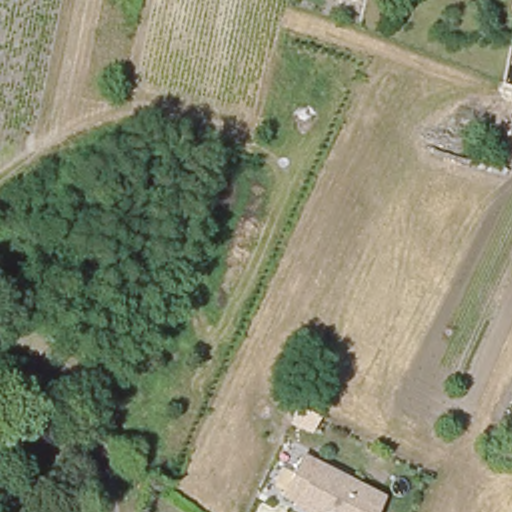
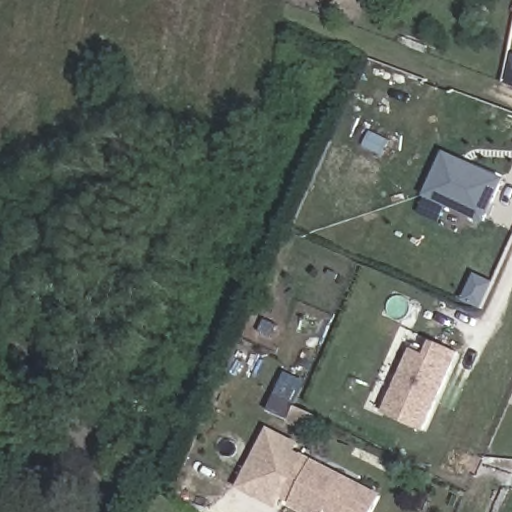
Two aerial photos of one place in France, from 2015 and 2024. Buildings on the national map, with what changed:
new [(485,224),(423,197),(445,150),(506,178),(485,224)]
new [(425,432),(383,412),(411,347),(426,354),(432,339),(460,353),(425,432)]
new [(288,423),(289,421),(268,411),(287,370),(311,381),(299,406),(321,417),(312,434),(288,423)]
new [(279,509),(238,489),(268,427),(301,443),(297,450),(302,453),(279,496),(284,499),(279,509)]
unchanged [(386,498),(378,512),(308,512),(279,496),(302,453),(386,498)]

